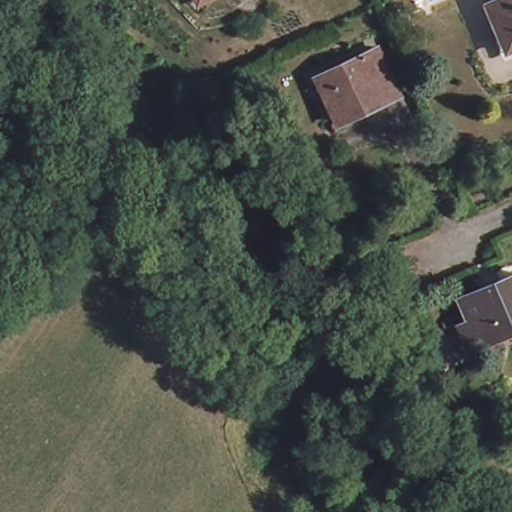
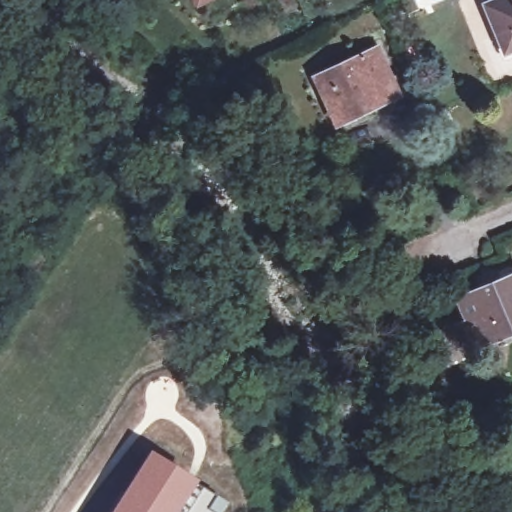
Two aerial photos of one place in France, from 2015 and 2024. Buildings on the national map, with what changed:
unchanged [(197,6),(194,0),(211,0),(197,6)]
unchanged [(476,3),(484,0),(512,0),(512,44),(495,50),(487,31),(476,3)]
unchanged [(317,77),(376,48),(398,92),(339,120),(317,77)]
unchanged [(455,319),(469,313),(460,294),(512,273),(512,328),(504,332),(502,327),(479,336),(480,341),(467,347),(455,319)]
new [(199,482),(183,512),(111,512),(150,450),(199,482)]

